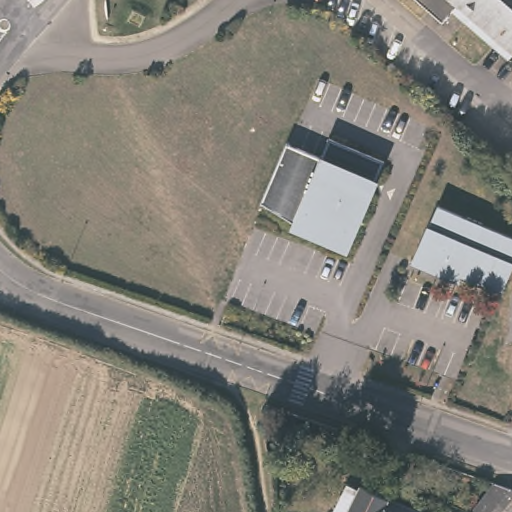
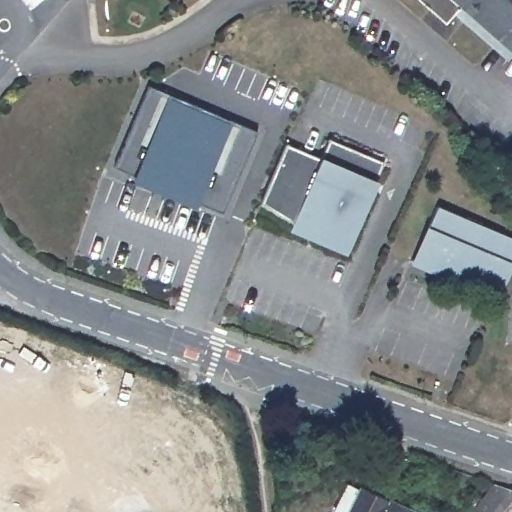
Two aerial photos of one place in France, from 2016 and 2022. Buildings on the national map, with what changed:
unchanged [(423,0),(512,0),(512,58),(452,8),(445,18),(433,9),(423,0)]
new [(152,89),(262,132),(230,215),(173,192),(176,185),(166,181),(163,188),(120,171),(152,89)]
unchanged [(286,144),(320,158),(328,138),(384,161),(376,179),(360,172),(356,180),(373,187),(353,238),(335,231),(330,243),(262,204),(286,144)]
unchanged [(512,240),(512,260),(498,296),(456,279),(460,272),(450,268),(447,276),(412,262),(421,241),(420,240),(433,208),(512,240)]
unchanged [(278,439),(268,440),(267,428),(277,428),(278,439)]
unchanged [(505,485),(512,491),(512,505),(506,512),(475,512),(472,510),(469,505),(479,495),(492,480),(505,485)]
unchanged [(354,493),(356,488),(365,492),(370,494),(362,512),(335,512),(346,489),(354,493)]
unchanged [(412,512),(362,512),(370,494),(378,497),(412,512)]

